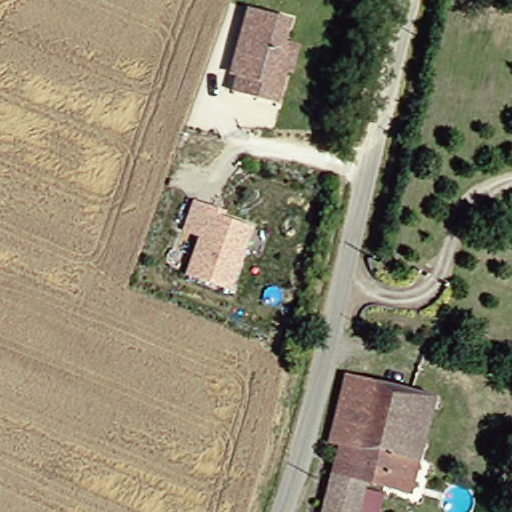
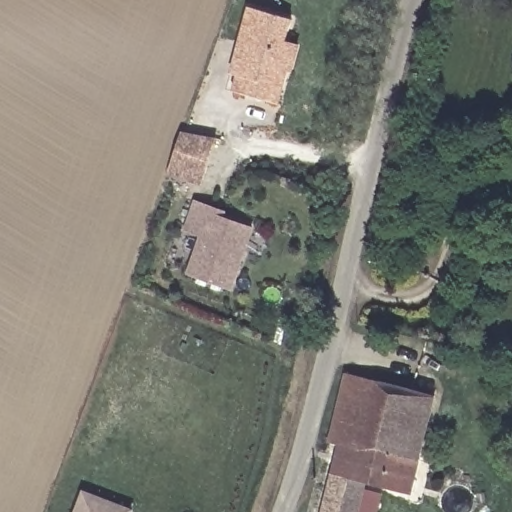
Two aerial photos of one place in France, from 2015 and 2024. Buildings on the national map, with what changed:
unchanged [(293,72),(287,70),(277,103),(232,89),(244,51),(237,48),(249,7),(292,19),(286,41),(300,45),(293,72)]
new [(182,132),(212,138),(201,168),(196,181),(168,172),(173,157),(182,132)]
unchanged [(231,288),(187,272),(201,234),(185,228),(195,200),(212,205),(210,212),(252,227),(231,288)]
unchanged [(362,486),(355,512),(315,512),(330,449),(322,447),(341,378),(429,400),(403,493),(362,486)]
new [(130,509),(130,512),(74,512),(81,491),(130,509)]

